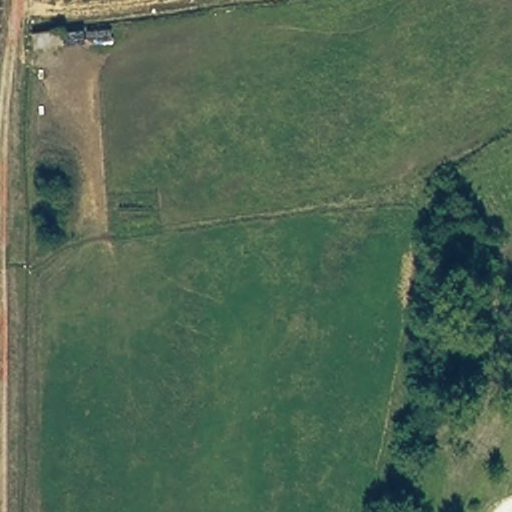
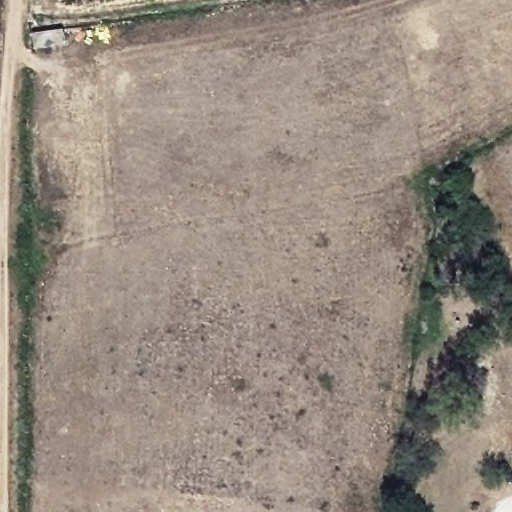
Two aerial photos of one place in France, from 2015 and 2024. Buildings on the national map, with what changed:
unchanged [(64,46),(32,50),(31,30),(65,27),(64,46)]

